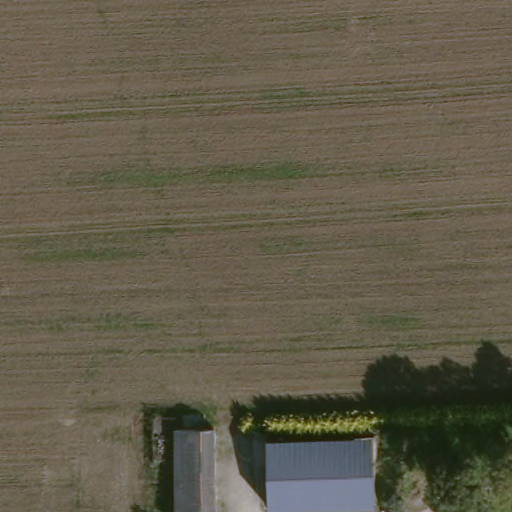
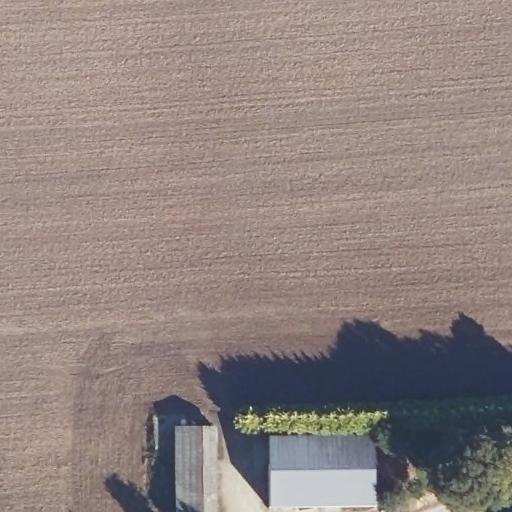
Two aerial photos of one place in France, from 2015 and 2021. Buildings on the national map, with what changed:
unchanged [(172,434),(205,434),(205,453),(212,452),(212,512),(173,512),(172,434)]
unchanged [(263,439),(369,438),(370,508),(264,510),(263,439)]

